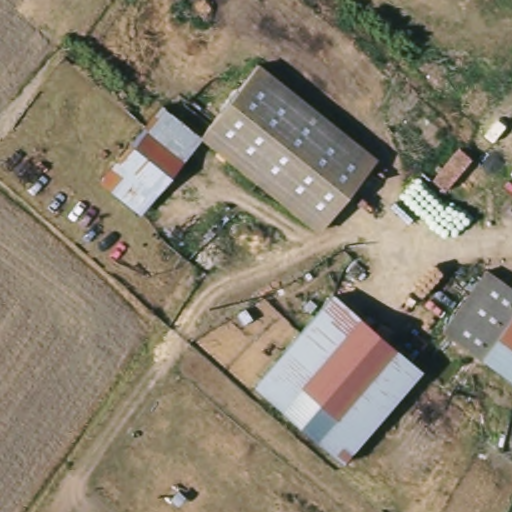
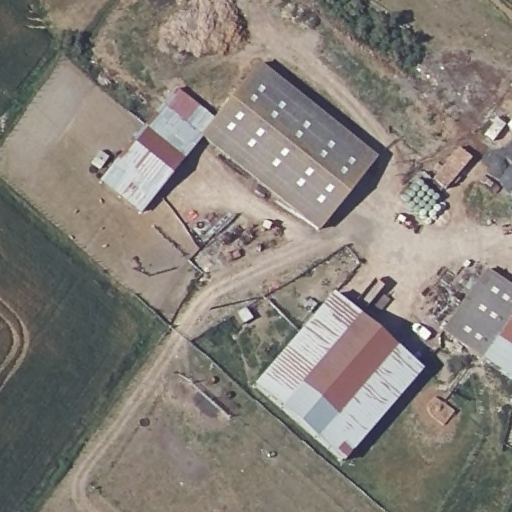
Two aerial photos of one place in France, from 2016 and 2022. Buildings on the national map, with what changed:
unchanged [(374,161),(321,227),(206,133),(258,68),(374,161)]
unchanged [(202,136),(140,214),(97,179),(161,103),(202,136)]
unchanged [(455,148),(468,159),(445,189),(432,177),(455,148)]
unchanged [(441,338),(491,270),(512,284),(512,384),(441,338)]
unchanged [(423,379),(338,463),(262,384),(347,300),(423,379)]

